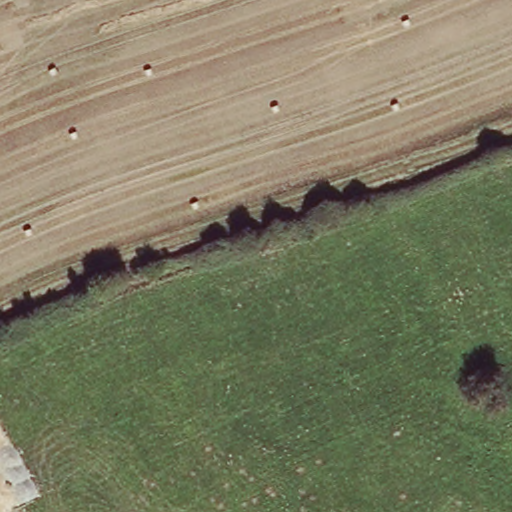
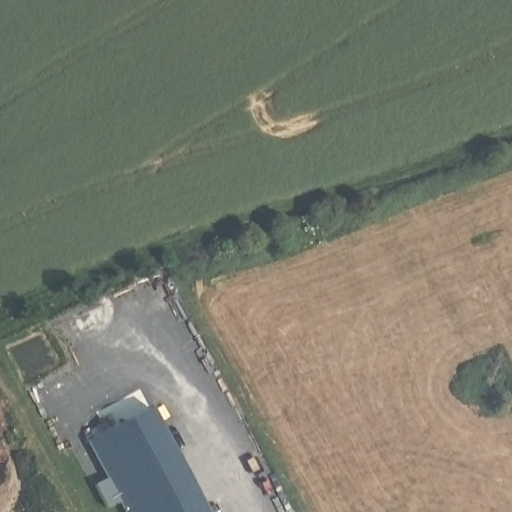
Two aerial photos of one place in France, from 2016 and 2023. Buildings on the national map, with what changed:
new [(150,412),(204,512),(125,512),(89,445),(150,412)]

